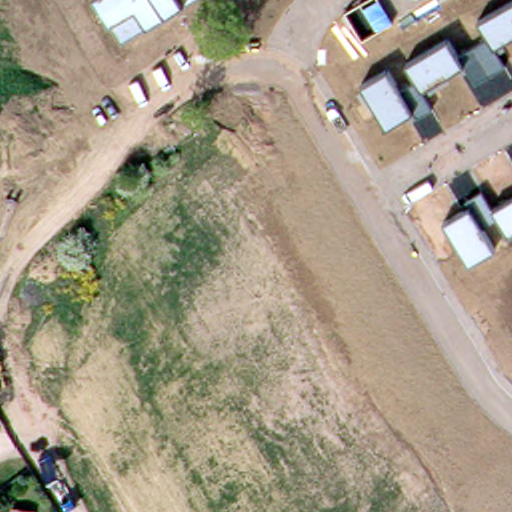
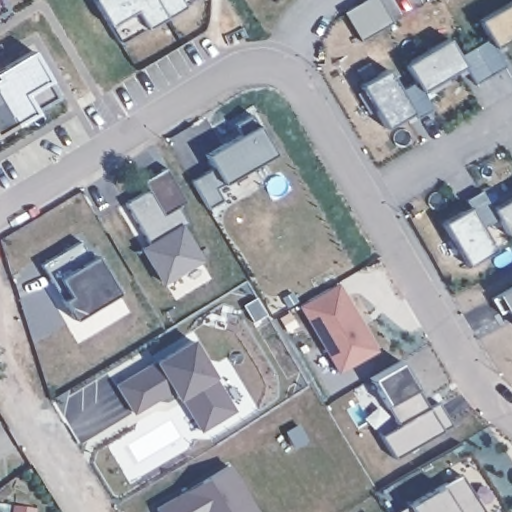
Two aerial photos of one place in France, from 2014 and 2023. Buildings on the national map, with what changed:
unchanged [(97,0),(189,0),(122,41),(97,0)]
new [(361,40),(345,12),(365,0),(380,0),(392,22),(361,40)]
unchanged [(400,87),(415,78),(407,65),(448,39),(456,52),(487,34),(480,19),(511,0),(512,0),(512,37),(497,46),(508,64),(474,84),(463,67),(423,92),(433,108),(413,121),(408,113),(387,127),(362,87),(389,71),(400,87)]
new [(0,10),(0,5),(2,9),(0,10)]
new [(0,132),(0,69),(30,51),(47,79),(60,97),(35,112),(0,132)]
new [(215,167),(208,155),(240,136),(234,126),(250,116),(257,128),(272,154),(223,184),(216,189),(222,200),(209,207),(193,181),(215,167)]
new [(125,204),(147,191),(142,182),(166,169),(187,203),(178,207),(187,223),(183,226),(203,261),(162,283),(142,248),(149,243),(125,204)]
unchanged [(470,207),(465,199),(482,189),(493,208),(512,197),(512,232),(508,234),(497,216),(481,226),(495,250),(469,266),(445,222),(470,207)]
new [(90,257),(95,255),(115,292),(73,317),(41,264),(80,241),(90,257)]
new [(380,353),(342,374),(301,306),(340,285),(380,353)]
new [(499,294),(512,286),(512,316),(507,308),(501,312),(493,299),(499,294)]
new [(235,410),(196,431),(173,391),(133,412),(118,384),(192,339),(235,410)]
new [(427,400),(432,407),(442,402),(455,424),(399,458),(385,437),(403,425),(375,378),(404,361),(427,400)]
new [(155,505),(230,463),(256,512),(159,512),(155,505)]
new [(410,505),(442,486),(461,475),(483,512),(400,512),(410,505)]
new [(15,507),(35,510),(34,512),(14,512),(15,507)]

